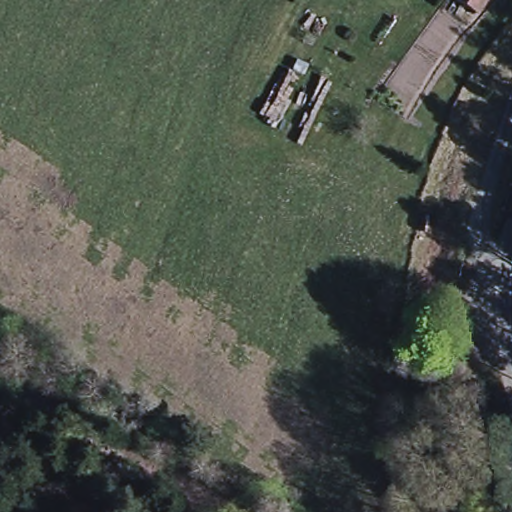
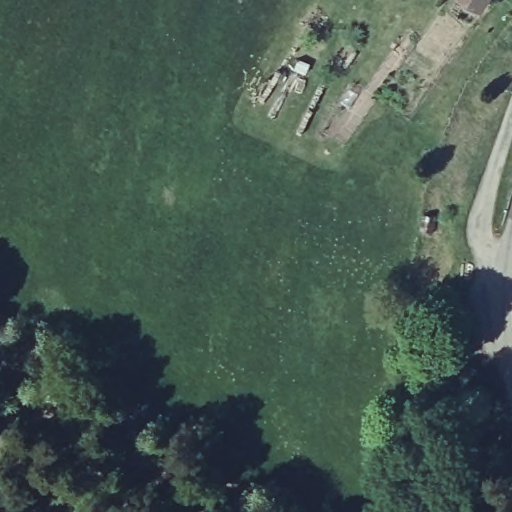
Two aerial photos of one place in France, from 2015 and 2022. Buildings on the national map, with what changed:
unchanged [(476,10),(459,0),(483,0),(476,10)]

